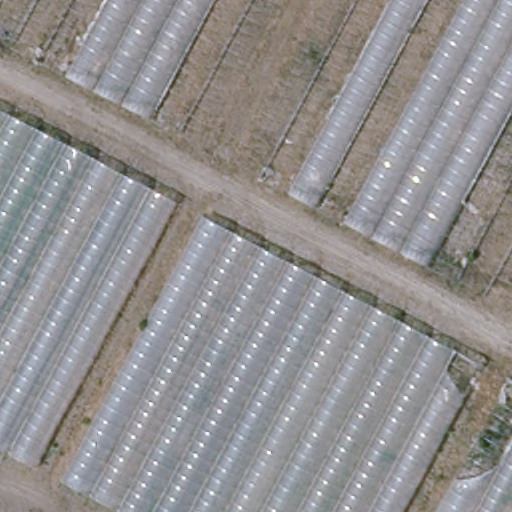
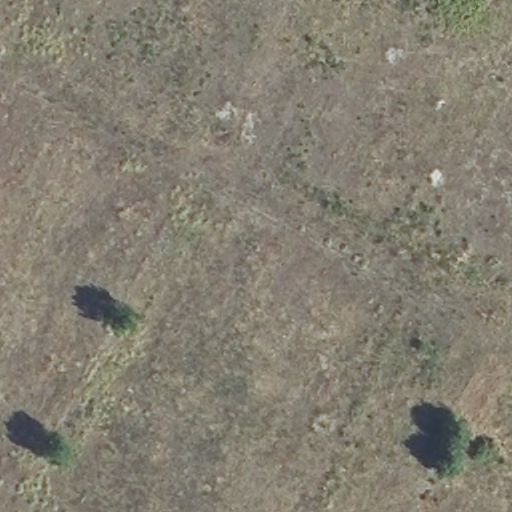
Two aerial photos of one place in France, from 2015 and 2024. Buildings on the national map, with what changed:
demolished [(32,58),(65,0),(207,0),(144,118),(32,58)]
demolished [(452,280),(288,191),(388,0),(512,0),(512,167),(452,280)]
demolished [(0,449),(0,108),(512,378),(512,512),(118,512),(0,449)]

